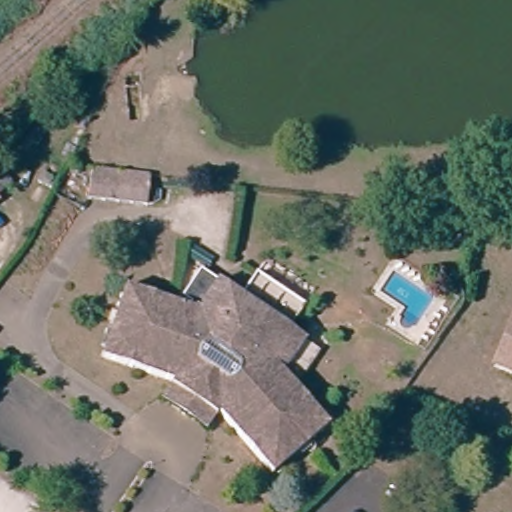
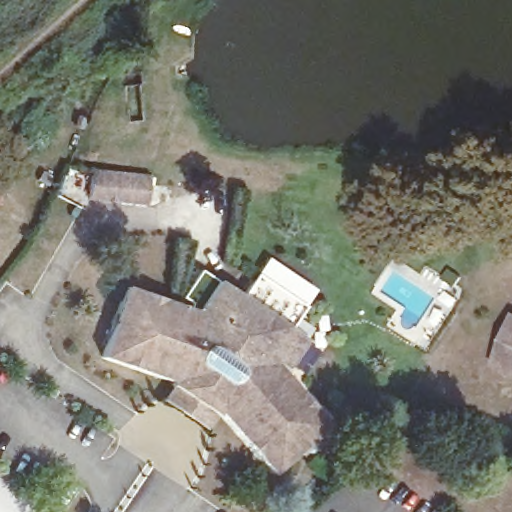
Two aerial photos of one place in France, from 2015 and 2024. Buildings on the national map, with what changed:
unchanged [(150,199),(91,190),(95,163),(155,170),(150,199)]
unchanged [(0,198),(0,187),(6,194),(0,198)]
unchanged [(166,396),(174,382),(173,376),(106,354),(128,284),(198,307),(200,303),(182,294),(200,267),(240,291),(252,267),(301,296),(286,320),(309,332),(287,367),(332,417),(277,468),(222,409),(220,412),(209,425),(166,396)]
unchanged [(503,362),(512,339),(512,365),(503,362)]

